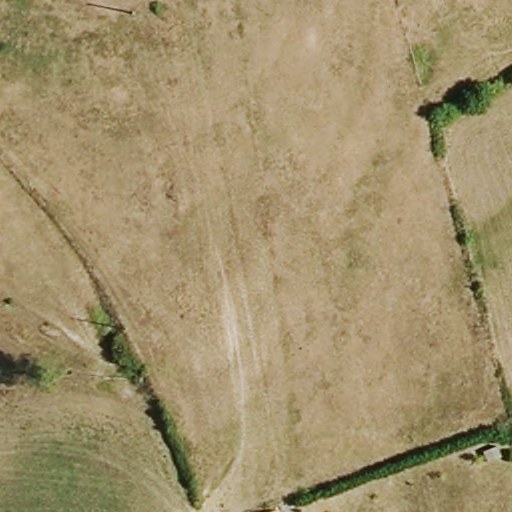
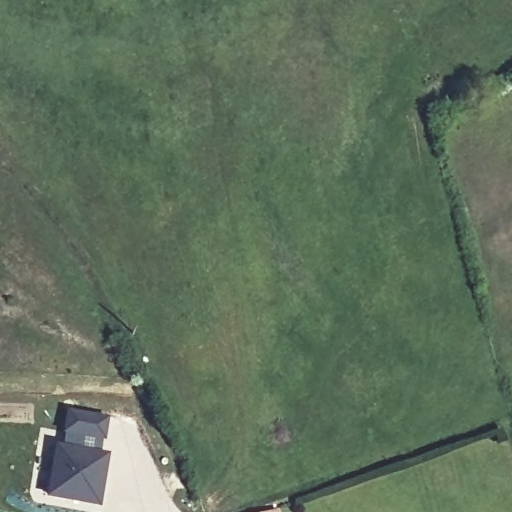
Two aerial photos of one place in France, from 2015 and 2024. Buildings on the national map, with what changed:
new [(106,440),(62,433),(65,411),(110,417),(106,440)]
new [(101,508),(45,499),(54,445),(111,454),(101,508)]
new [(279,512),(277,512),(278,511),(279,512)]

